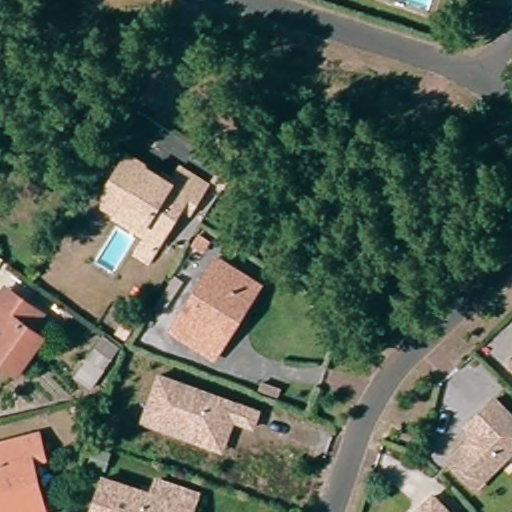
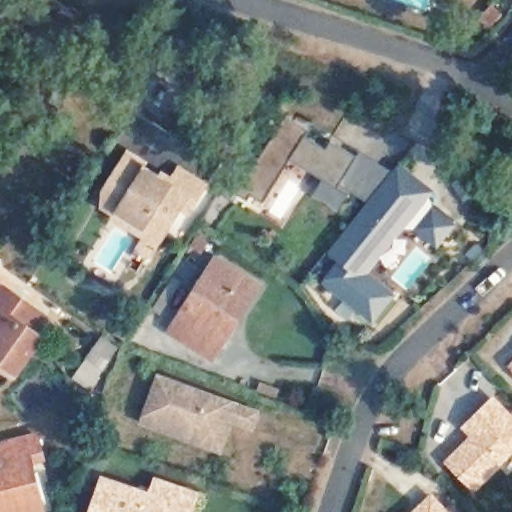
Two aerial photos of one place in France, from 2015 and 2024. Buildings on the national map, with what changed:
new [(264,200),(250,192),(247,198),(238,191),(286,116),(307,129),(303,135),(327,148),(331,141),(357,156),(361,150),(393,171),(370,200),(340,182),(337,186),(347,193),(336,209),(314,195),(324,178),(291,156),(264,200)]
unchanged [(99,202),(101,186),(122,151),(166,179),(176,163),(202,180),(184,210),(176,205),(166,219),(149,208),(141,222),(115,206),(112,210),(99,202)]
new [(340,258),(330,251),(400,162),(437,189),(371,273),(399,294),(376,323),(324,281),(340,258)]
unchanged [(153,241),(142,258),(130,250),(140,234),(110,215),(112,210),(115,206),(141,222),(149,208),(166,219),(153,241)]
unchanged [(172,328),(217,254),(237,266),(262,281),(237,320),(217,355),(172,328)]
unchanged [(35,314),(23,331),(31,338),(6,375),(0,371),(0,288),(14,298),(35,314)]
unchanged [(128,336),(120,331),(129,316),(136,322),(128,336)]
unchanged [(87,390),(71,379),(100,331),(117,345),(87,390)]
unchanged [(138,419),(141,412),(156,373),(255,411),(249,427),(229,419),(217,450),(138,419)]
unchanged [(450,462),(470,443),(476,436),(467,427),(496,399),(512,416),(512,453),(476,488),(450,462)]
unchanged [(23,451),(39,510),(33,512),(0,512),(0,441),(31,433),(35,447),(23,451)]
unchanged [(179,502),(175,512),(92,512),(105,476),(153,492),(158,478),(199,492),(194,507),(179,502)]
unchanged [(414,507),(428,494),(444,512),(413,512),(416,509),(414,507)]
unchanged [(175,512),(179,502),(194,507),(192,512),(175,512)]

